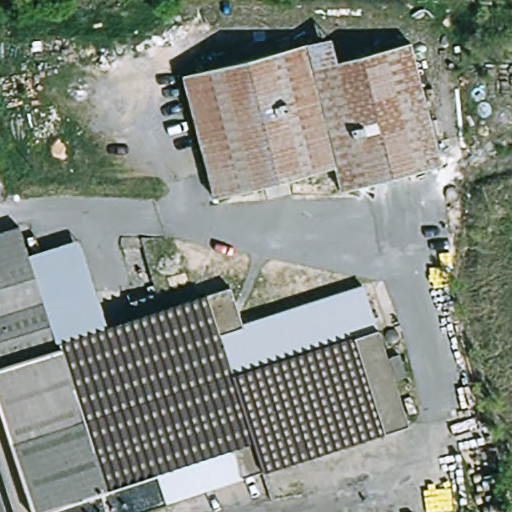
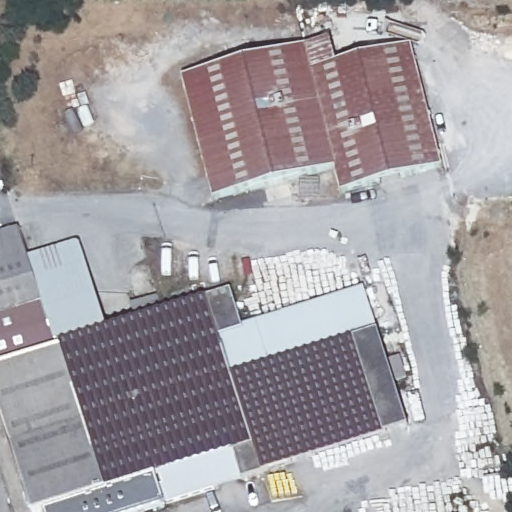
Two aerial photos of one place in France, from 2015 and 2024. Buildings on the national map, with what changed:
unchanged [(442,167),(341,193),(334,168),(213,199),(182,77),(306,46),(330,40),(336,64),(411,45),(442,167)]
unchanged [(13,512),(0,471),(0,234),(19,228),(28,259),(55,344),(107,328),(207,297),(230,289),(242,328),(363,289),(407,426),(242,479),(213,488),(140,512),(13,512)]
unchanged [(107,328),(55,344),(28,259),(80,243),(107,328)]
unchanged [(406,379),(396,382),(388,360),(399,357),(406,379)]

